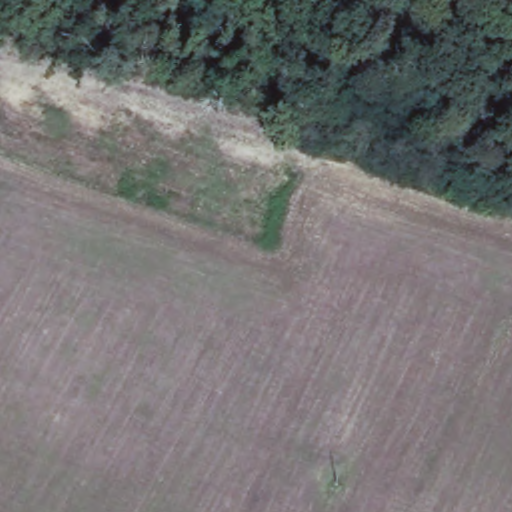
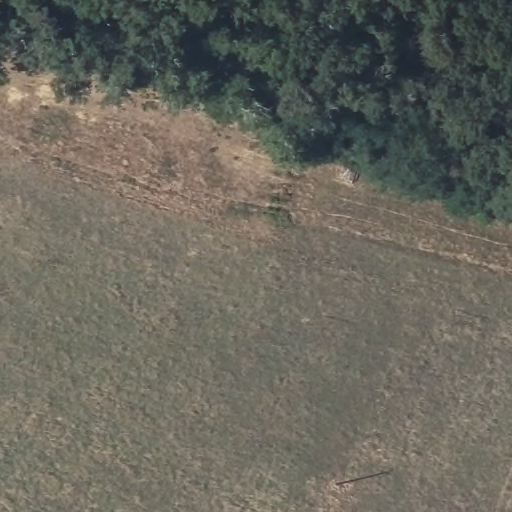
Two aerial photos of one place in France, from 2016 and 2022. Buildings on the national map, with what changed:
[]

